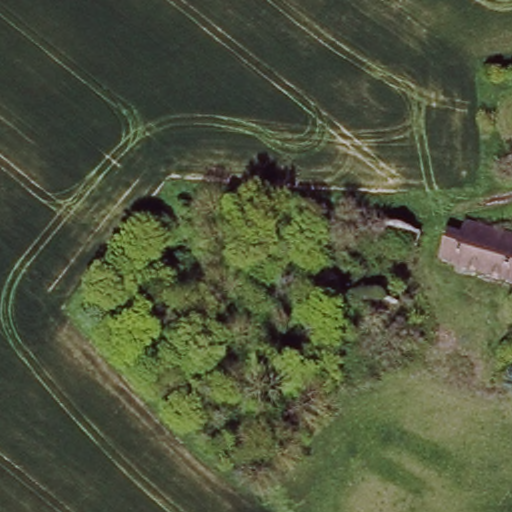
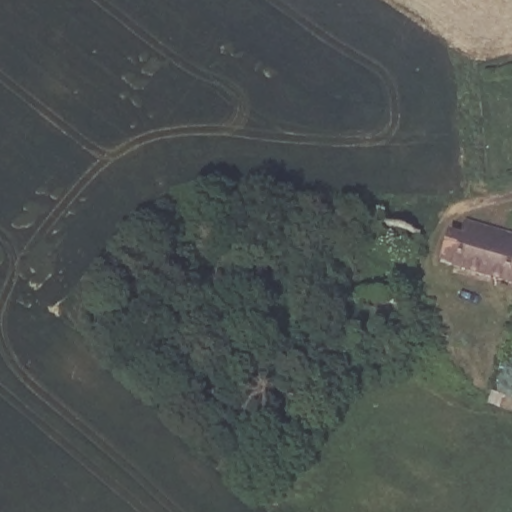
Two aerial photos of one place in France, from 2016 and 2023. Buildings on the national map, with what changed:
unchanged [(456,229),(460,217),(512,234),(512,282),(450,263),(451,260),(437,255),(446,225),(456,229)]

